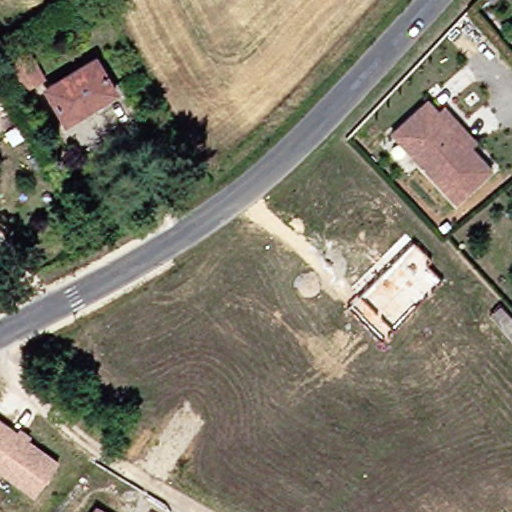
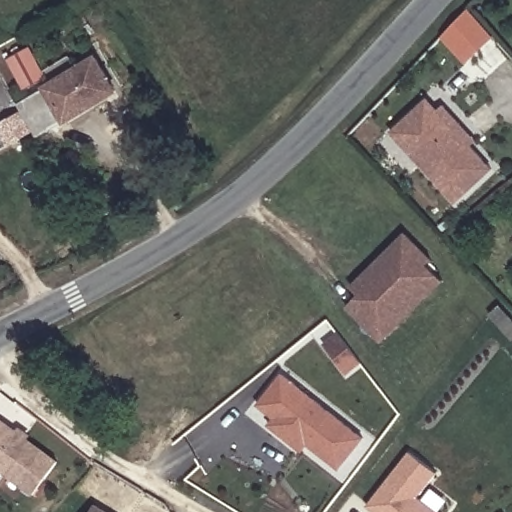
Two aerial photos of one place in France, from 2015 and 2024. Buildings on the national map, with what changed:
new [(467,15),(489,42),(469,60),(448,37),(467,15)]
unchanged [(41,75),(23,87),(5,57),(23,45),(41,75)]
unchanged [(69,130),(63,122),(42,86),(95,53),(118,90),(102,99),(108,107),(69,130)]
unchanged [(398,130),(420,108),(427,101),(439,113),(444,108),(477,143),(472,148),(493,171),(457,205),(419,165),(392,135),(398,130)]
new [(347,307),(360,294),(351,287),(405,232),(432,257),(428,263),(444,279),(381,341),(347,307)]
unchanged [(512,243),(512,251),(509,246),(512,243)]
new [(512,319),(512,342),(489,316),(498,304),(512,319)]
new [(338,336),(359,360),(346,371),(324,347),(338,336)]
new [(339,469),(308,446),(303,452),(269,424),(274,417),(258,405),(283,372),(364,437),(339,469)]
unchanged [(59,462),(35,494),(0,468),(0,419),(59,462)]
new [(438,512),(376,512),(368,505),(410,451),(437,472),(419,496),(438,512)]

